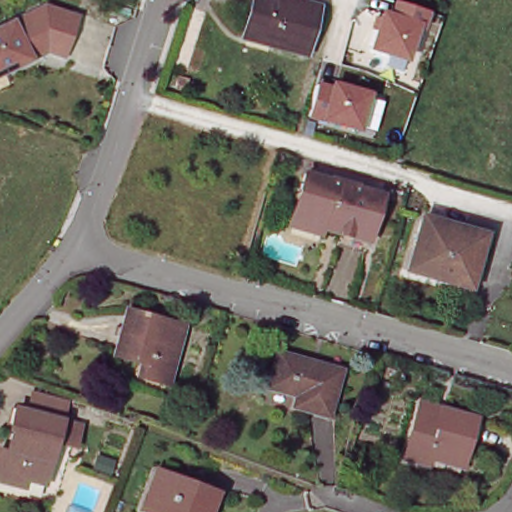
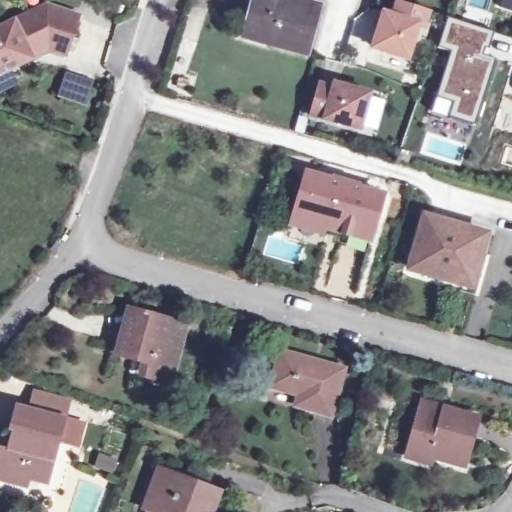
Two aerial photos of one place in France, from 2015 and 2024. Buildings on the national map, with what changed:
unchanged [(257,0),(305,0),(320,4),(307,54),(272,43),(245,35),(249,26),(257,0)]
unchanged [(429,15),(425,29),(421,28),(408,64),(373,52),(380,31),(375,29),(380,14),(392,16),(395,4),(429,15)]
unchanged [(47,51),(31,59),(0,74),(0,26),(42,6),(77,18),(65,54),(64,57),(47,51)]
new [(494,33),(492,49),(500,61),(479,125),(452,116),(457,103),(440,97),(455,49),(444,46),(452,19),(494,33)]
new [(92,83),(84,106),(55,97),(64,73),(92,83)]
unchanged [(372,96),(360,134),(308,120),(319,87),(329,90),(334,84),(372,96)]
unchanged [(293,229),(295,221),(304,194),(310,175),(386,198),(372,244),(345,237),(325,230),(324,237),(293,229)]
unchanged [(489,235),(483,254),(474,285),(411,268),(425,218),(487,235),(489,235)]
unchanged [(183,328),(169,384),(141,375),(147,361),(115,352),(127,313),(183,328)]
unchanged [(347,370),(332,416),(295,405),(298,395),(273,385),(285,349),(347,370)]
unchanged [(482,417),(469,457),(442,448),(437,465),(409,455),(427,399),(482,417)]
unchanged [(81,437),(76,453),(62,448),(49,490),(25,484),(23,495),(0,487),(0,471),(5,456),(18,459),(25,438),(14,434),(22,414),(33,418),(40,401),(74,412),(67,429),(67,432),(81,437)]
unchanged [(162,473),(219,491),(212,512),(150,512),(162,473)]

